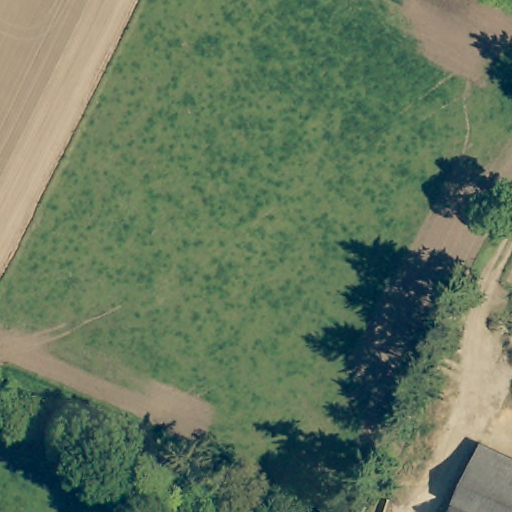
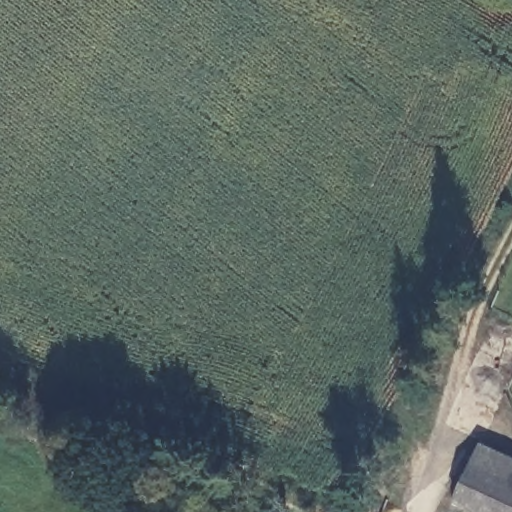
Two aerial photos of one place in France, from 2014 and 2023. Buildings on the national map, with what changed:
unchanged [(512,471),(512,512),(452,512),(472,458),(512,471)]
unchanged [(222,499),(223,498),(228,497),(234,497),(235,497),(239,499),(244,503),(244,505),(246,509),(247,512),(214,512),(214,508),(218,502),(222,499)]

